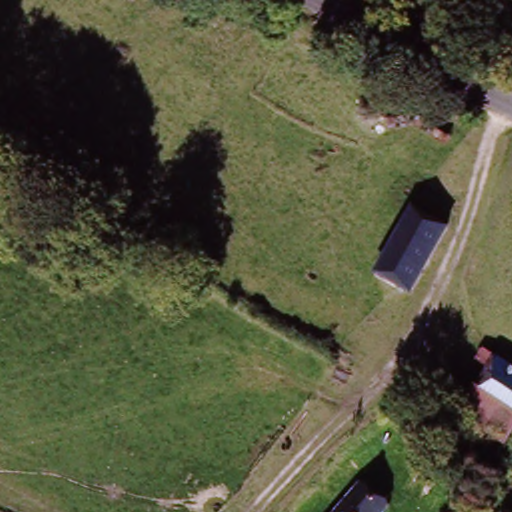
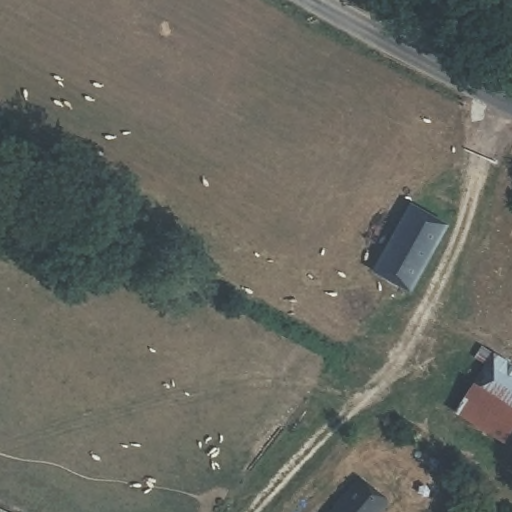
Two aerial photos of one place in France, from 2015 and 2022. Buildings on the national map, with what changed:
unchanged [(370,270),(405,211),(449,237),(413,298),(403,292),(394,304),(376,290),(384,278),(370,270)]
unchanged [(512,382),(512,417),(509,423),(465,396),(484,365),(512,382)]
unchanged [(375,512),(330,512),(359,479),(385,500),(375,512)]

